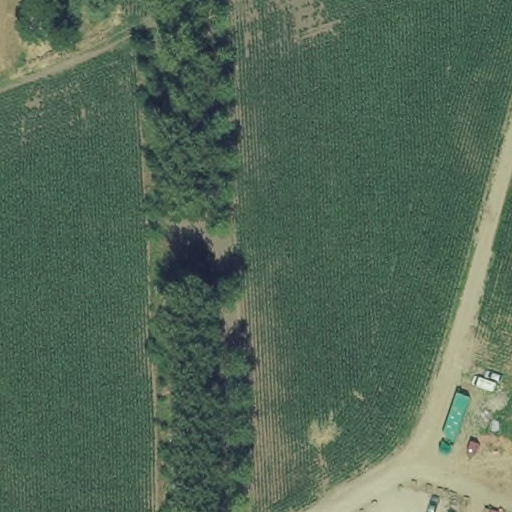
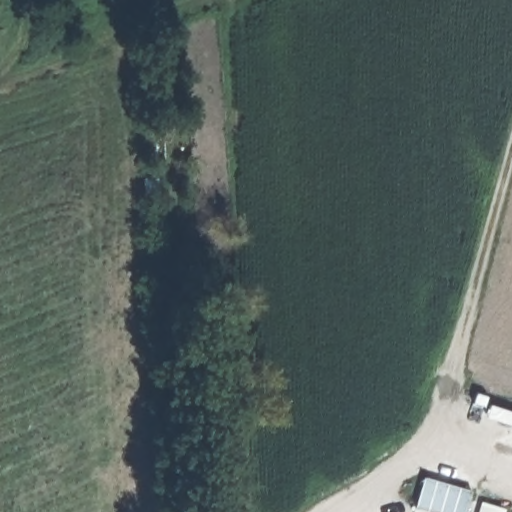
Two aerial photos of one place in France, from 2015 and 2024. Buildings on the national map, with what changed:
new [(468,512),(426,512),(417,510),(425,480),(473,492),(468,512)]
new [(482,501),(504,509),(503,512),(479,512),(482,501)]

